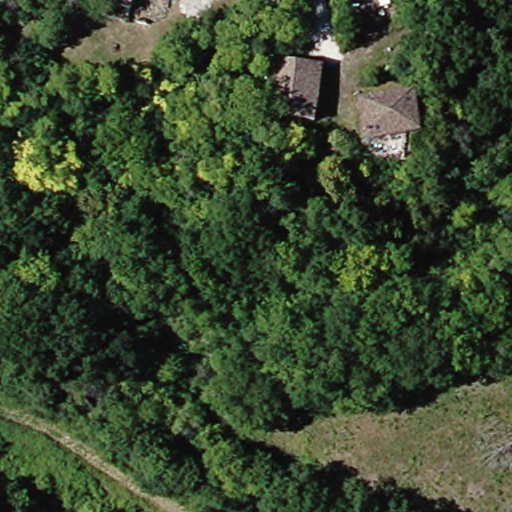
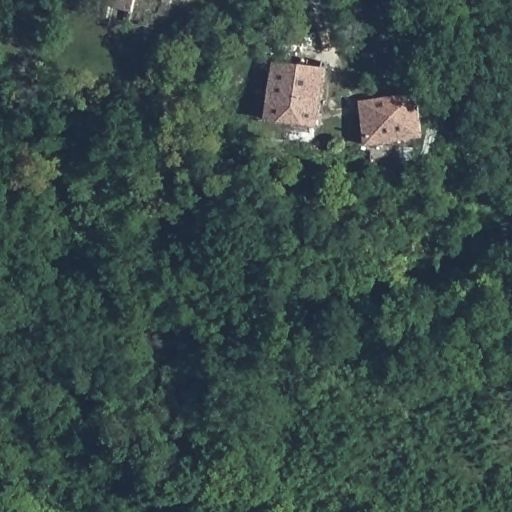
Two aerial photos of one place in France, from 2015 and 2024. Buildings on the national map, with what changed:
unchanged [(95,17),(98,0),(135,0),(130,25),(95,17)]
unchanged [(235,15),(230,44),(222,42),(229,12),(235,15)]
unchanged [(311,129),(261,120),(270,65),(318,75),(311,129)]
unchanged [(413,99),(420,140),(363,147),(356,105),(413,99)]

